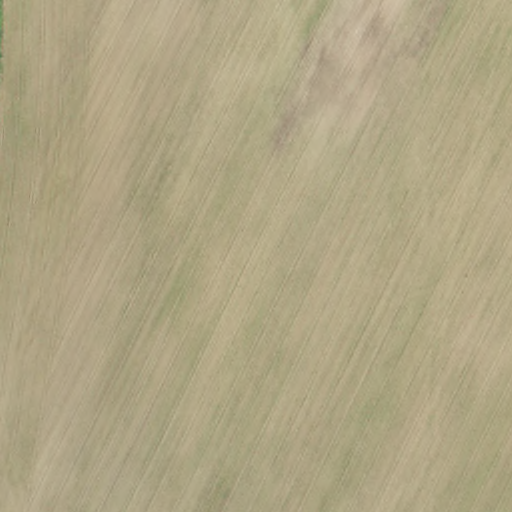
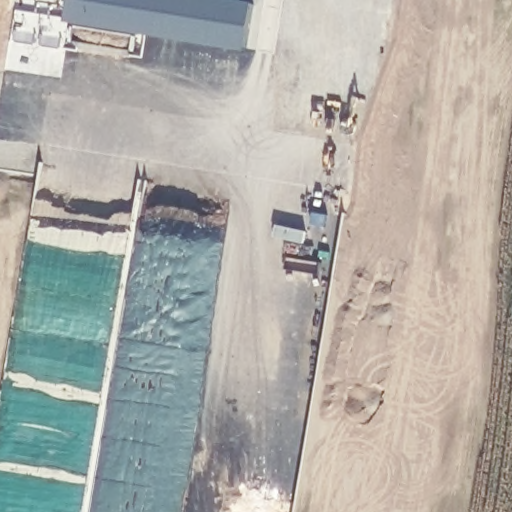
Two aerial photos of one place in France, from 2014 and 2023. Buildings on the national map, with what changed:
new [(254,3),(244,50),(71,25),(73,0),(229,0),(254,3)]

